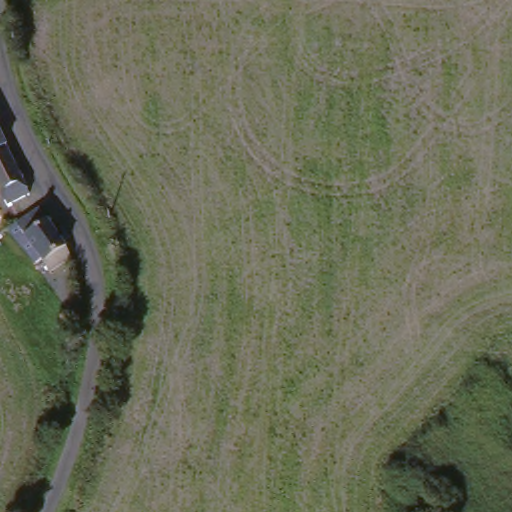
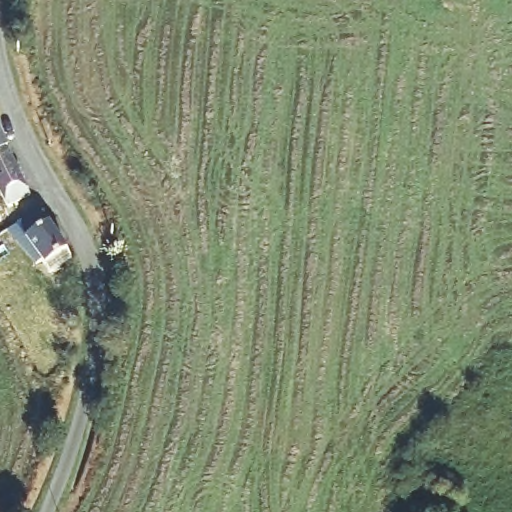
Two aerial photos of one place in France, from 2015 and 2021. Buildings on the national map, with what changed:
unchanged [(0,154),(0,129),(10,148),(0,154)]
unchanged [(12,202),(0,182),(0,154),(10,148),(32,190),(12,202)]
unchanged [(72,251),(78,261),(79,264),(62,273),(56,260),(50,263),(26,226),(47,212),(72,251)]

